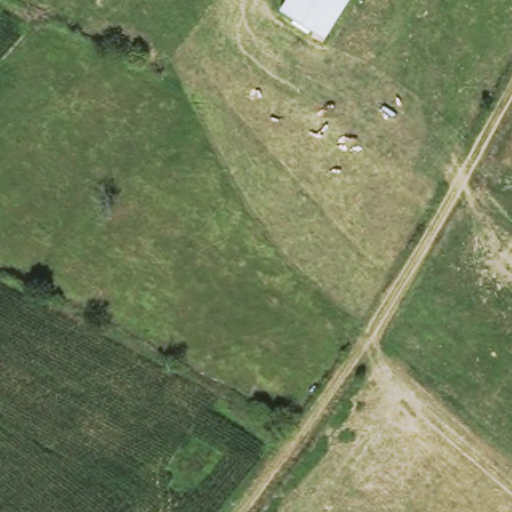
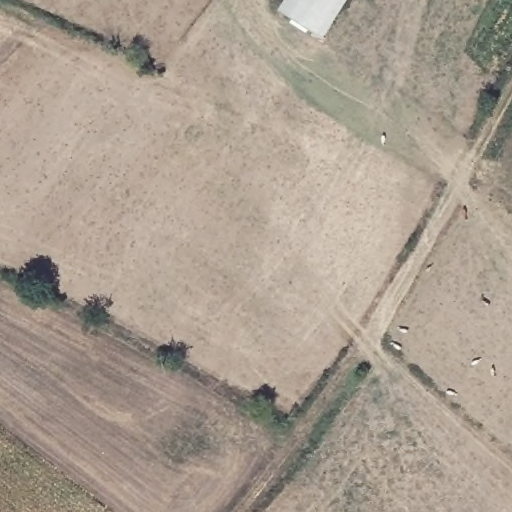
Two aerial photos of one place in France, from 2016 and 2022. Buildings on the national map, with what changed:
unchanged [(326,38),(282,8),(288,0),(350,0),(326,38)]

